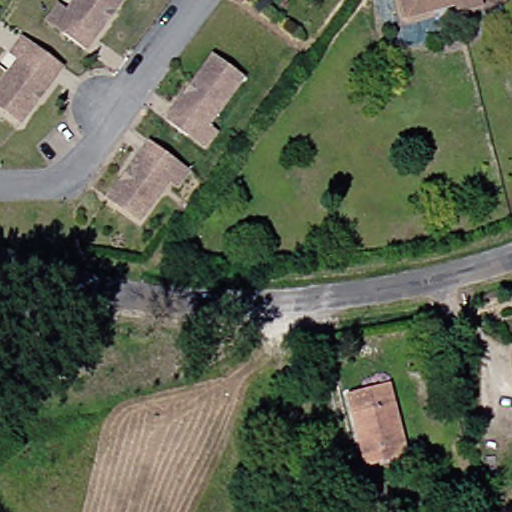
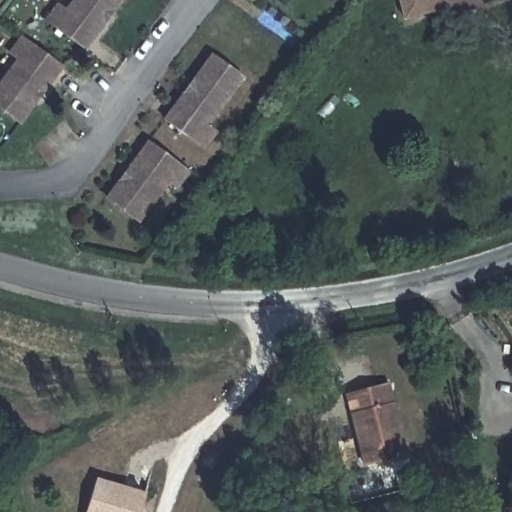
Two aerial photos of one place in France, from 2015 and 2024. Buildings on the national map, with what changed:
unchanged [(36,21),(47,5),(56,11),(63,0),(112,0),(80,50),(55,32),(54,33),(36,21)]
unchanged [(444,17),(441,6),(395,20),(389,0),(472,0),(474,8),(444,17)]
unchanged [(0,114),(0,64),(6,54),(0,50),(0,44),(9,32),(26,45),(51,61),(11,121),(0,114)]
unchanged [(234,76),(200,123),(208,129),(196,147),(154,118),(203,52),(234,76)]
unchanged [(182,169),(172,183),(161,175),(131,220),(97,197),(138,139),(158,153),(182,169)]
unchanged [(501,365),(503,343),(512,344),(512,366),(501,365)]
unchanged [(399,447),(384,451),(388,465),(358,471),(339,396),(383,385),(399,447)]
unchanged [(512,393),(512,417),(511,416),(512,393)]
new [(148,493),(142,512),(88,512),(99,479),(148,493)]

